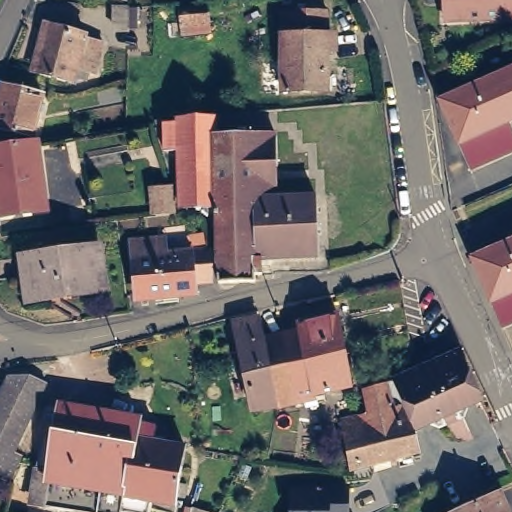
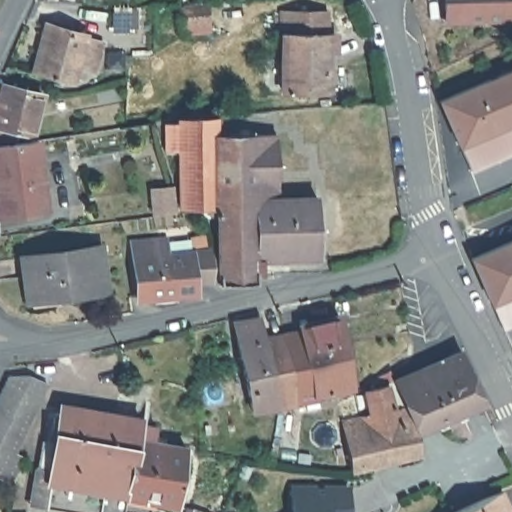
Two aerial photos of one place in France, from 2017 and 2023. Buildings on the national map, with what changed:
unchanged [(111,27),(111,0),(119,0),(126,1),(126,27),(111,27)]
unchanged [(449,0),(512,0),(512,15),(450,17),(449,0)]
unchanged [(178,6),(207,5),(208,26),(179,26),(178,6)]
unchanged [(326,17),(327,37),(327,97),(281,99),(281,17),(326,17)]
unchanged [(77,77),(75,82),(36,72),(50,24),(88,35),(87,39),(106,44),(98,75),(91,73),(90,81),(77,77)]
unchanged [(432,105),(512,69),(512,122),(501,127),(512,146),(512,157),(464,176),(455,149),(432,105)]
unchanged [(7,100),(12,85),(50,95),(39,136),(25,134),(23,141),(0,144),(0,132),(4,115),(0,114),(0,103),(1,99),(7,100)]
unchanged [(321,198),(322,258),(266,261),(266,276),(259,276),(258,283),(221,284),(220,229),(215,229),(215,219),(207,212),(207,209),(184,209),(182,152),(168,152),(167,124),(181,124),(182,119),(218,119),(218,135),(280,133),(280,180),(285,180),(286,192),(281,192),(281,197),(321,198)]
unchanged [(55,211),(3,217),(0,191),(0,147),(45,141),(55,211)]
unchanged [(158,216),(158,212),(150,213),(147,189),(156,188),(177,186),(180,213),(158,216)]
unchanged [(200,283),(201,294),(141,301),(135,242),(168,238),(170,256),(215,251),(216,282),(200,283)]
unchanged [(475,261),(475,260),(512,244),(512,265),(483,278),(475,261)]
unchanged [(36,297),(31,259),(106,249),(112,290),(67,297),(36,302),(36,297)]
unchanged [(512,265),(512,326),(506,328),(483,278),(512,265)]
unchanged [(310,410),(308,402),(301,403),(286,336),(303,332),(303,325),(341,316),(355,387),(320,396),(320,398),(321,407),(310,410)]
unchanged [(255,411),(236,325),(262,320),(266,340),(286,336),(301,403),(281,407),(255,411)]
unchanged [(415,417),(398,382),(463,353),(483,401),(420,428),(415,417)]
unchanged [(419,429),(424,452),(353,470),(343,421),(362,417),(372,414),(368,392),(396,385),(396,383),(398,382),(415,417),(420,428),(419,429)]
unchanged [(9,385),(35,397),(42,400),(36,413),(18,453),(25,457),(12,484),(0,478),(0,403),(9,385)]
unchanged [(47,507),(36,506),(18,503),(25,467),(41,470),(44,457),(45,451),(46,441),(53,442),(59,413),(65,414),(65,407),(144,421),(143,425),(160,429),(158,437),(170,440),(169,446),(190,449),(187,458),(183,486),(190,487),(188,498),(181,497),(179,507),(155,502),(153,512),(65,512),(65,511),(47,507)]
unchanged [(378,495),(355,500),(351,481),(373,475),(378,495)]
unchanged [(288,485),(348,485),(348,512),(289,512),(288,485)]
unchanged [(238,492),(231,508),(225,505),(232,490),(238,492)]
unchanged [(503,492),(512,511),(512,512),(459,512),(503,492)]
unchanged [(192,506),(210,512),(191,512),(192,506)]

